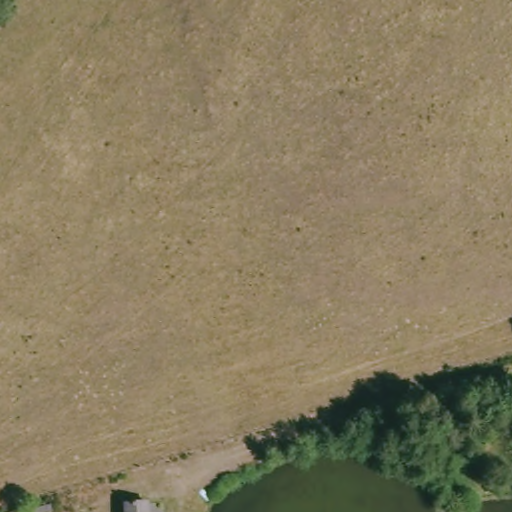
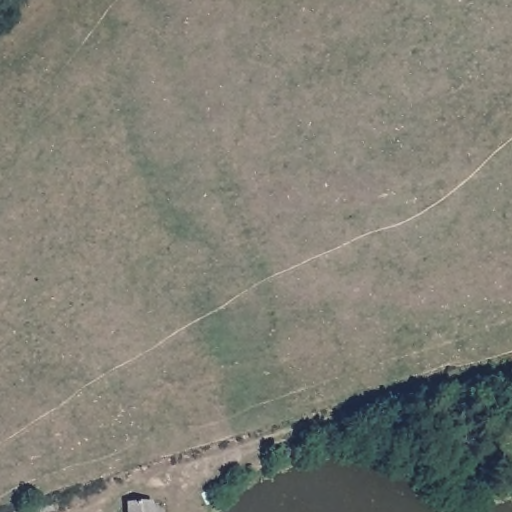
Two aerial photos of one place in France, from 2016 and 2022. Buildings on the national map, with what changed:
unchanged [(132,512),(131,508),(154,505),(155,512),(132,512)]

